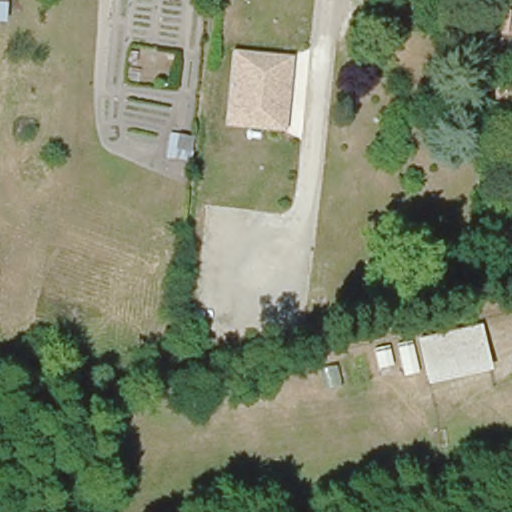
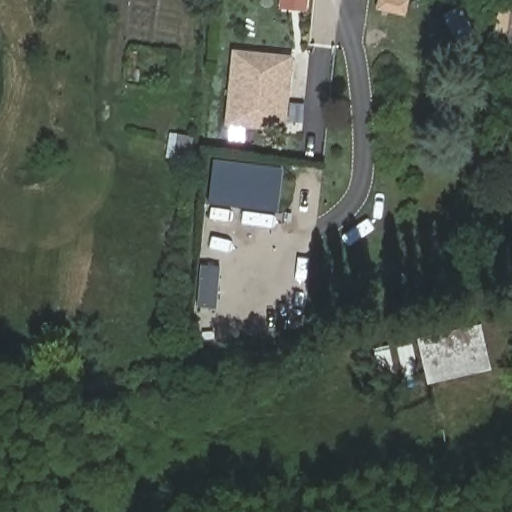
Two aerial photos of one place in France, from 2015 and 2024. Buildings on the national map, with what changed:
demolished [(4,24),(0,23),(0,2),(5,2),(4,24)]
unchanged [(292,54),(286,132),(223,125),(231,48),(292,54)]
unchanged [(196,130),(194,152),(167,150),(169,128),(196,130)]
new [(277,213),(207,205),(212,160),(282,167),(277,213)]
unchanged [(216,273),(216,282),(231,285),(227,322),(192,317),(198,271),(216,273)]
unchanged [(481,327),(489,367),(431,379),(422,340),(481,327)]

